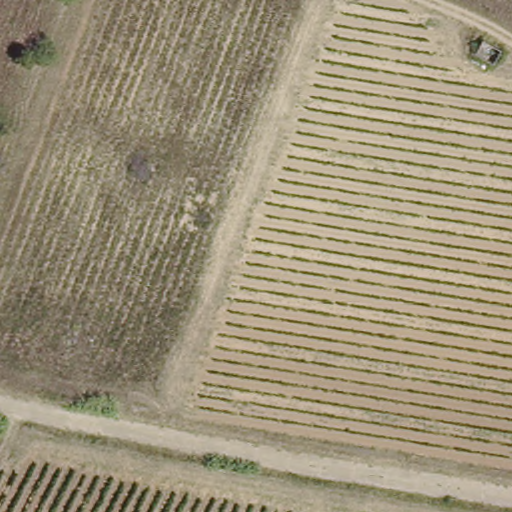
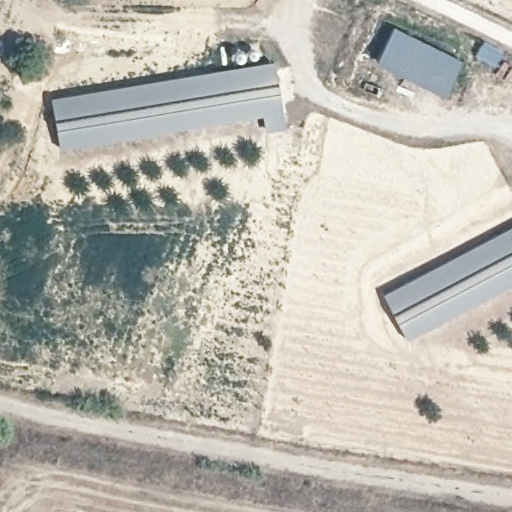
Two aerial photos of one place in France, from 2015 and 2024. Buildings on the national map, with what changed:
new [(396,28),(463,64),(446,96),(378,61),(396,28)]
unchanged [(483,43),(504,53),(498,67),(476,57),(483,43)]
new [(276,60),(286,123),(265,126),(263,111),(65,141),(58,94),(276,60)]
new [(512,287),(400,341),(379,298),(512,235),(512,287)]

